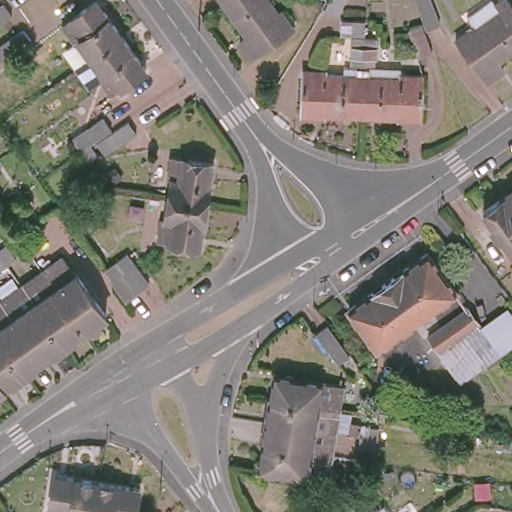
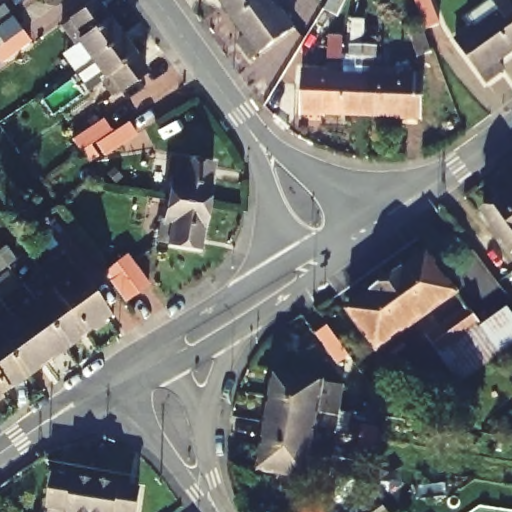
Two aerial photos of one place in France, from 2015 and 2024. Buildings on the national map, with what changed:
unchanged [(0,8),(0,0),(11,0),(0,8)]
unchanged [(90,57),(77,40),(75,42),(62,25),(96,0),(97,0),(121,34),(90,57)]
unchanged [(225,4),(222,0),(230,0),(225,4)]
unchanged [(278,12),(281,10),(295,29),(251,57),(239,39),(246,35),(225,4),(230,0),(270,0),(278,12)]
unchanged [(325,8),(310,1),(311,0),(329,0),(325,8)]
unchanged [(339,15),(325,8),(329,0),(346,0),(339,15)]
unchanged [(440,26),(426,30),(418,0),(432,0),(440,26)]
unchanged [(505,0),(509,0),(511,4),(512,3),(512,14),(503,2),(505,0)]
unchanged [(477,29),(503,10),(499,4),(503,2),(512,14),(512,52),(500,61),(505,68),(487,81),(457,39),(475,26),(477,29)]
unchanged [(305,70),(326,71),(326,75),(344,76),(345,68),(351,69),(354,20),(365,21),(365,35),(365,37),(376,37),(375,56),(364,56),(363,69),(363,74),(363,89),(362,114),(362,116),(325,114),(325,116),(302,115),(305,70)]
unchanged [(422,26),(431,53),(417,57),(410,30),(422,26)]
unchanged [(31,39),(2,60),(0,56),(0,45),(24,28),(31,39)]
unchanged [(112,94),(100,77),(103,75),(90,57),(121,34),(146,69),(112,94)]
unchanged [(370,69),(369,76),(400,78),(400,74),(422,75),(421,119),(398,119),(398,117),(362,116),(362,114),(363,89),(363,74),(363,69),(370,69)]
unchanged [(90,161),(83,150),(75,139),(105,119),(113,130),(92,144),(100,155),(90,161)]
unchanged [(129,123),(137,134),(106,155),(98,143),(129,123)]
unchanged [(167,178),(171,157),(213,164),(206,206),(170,200),(173,179),(167,178)]
unchanged [(512,188),(512,209),(502,195),(512,188)]
unchanged [(512,247),(485,208),(502,195),(512,209),(512,247)]
unchanged [(67,247),(40,208),(51,200),(79,239),(67,247)]
unchanged [(206,206),(200,247),(159,241),(162,220),(166,220),(170,200),(206,206)]
unchanged [(5,246),(15,260),(8,265),(0,270),(0,249),(5,246)]
unchanged [(48,266),(68,252),(111,310),(91,325),(48,266)]
unchanged [(102,268),(124,252),(146,282),(135,290),(121,270),(110,279),(102,268)]
unchanged [(428,253),(456,292),(377,349),(349,310),(428,253)]
unchanged [(28,281),(48,266),(91,325),(70,340),(28,281)]
unchanged [(70,340),(50,354),(8,296),(28,281),(70,340)]
unchanged [(0,327),(0,301),(8,296),(50,354),(30,369),(0,327)]
unchanged [(460,380),(428,337),(468,309),(499,352),(460,380)]
unchanged [(334,332),(350,354),(337,363),(317,333),(328,325),(334,332)]
unchanged [(0,369),(0,327),(30,369),(10,383),(0,369)]
unchanged [(10,383),(0,390),(0,369),(10,383)]
unchanged [(315,402),(269,395),(266,394),(270,370),(340,380),(335,405),(315,402)]
unchanged [(262,418),(266,394),(269,395),(315,402),(335,405),(331,429),(262,418)]
unchanged [(259,441),(262,418),(331,429),(327,452),(259,441)]
unchanged [(361,438),(362,427),(380,429),(378,440),(376,450),(360,447),(361,438)]
unchanged [(327,452),(323,475),(255,465),(259,441),(327,452)]
unchanged [(92,512),(76,512),(70,511),(70,505),(50,501),(55,471),(97,478),(92,512)]
unchanged [(135,512),(120,512),(114,511),(114,512),(92,512),(97,478),(138,484),(135,512)]
unchanged [(305,512),(327,497),(335,507),(328,512),(305,512)]

